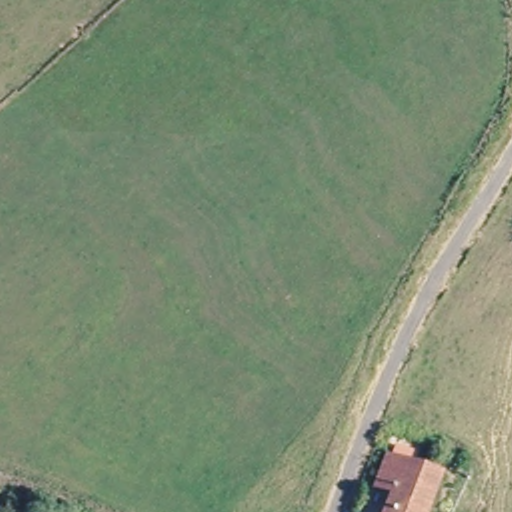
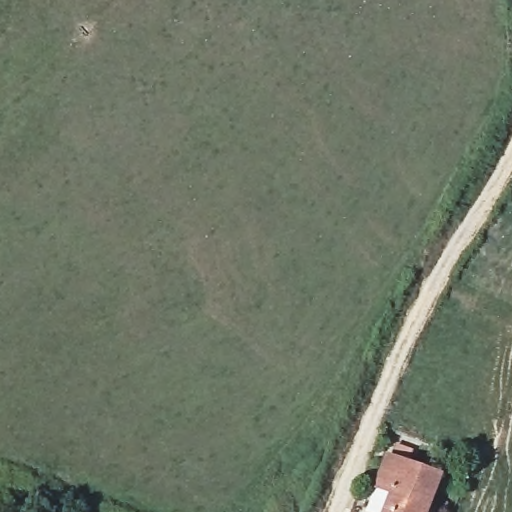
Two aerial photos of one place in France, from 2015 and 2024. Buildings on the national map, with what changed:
unchanged [(445,470),(429,512),(392,512),(396,500),(387,496),(392,485),(381,479),(391,452),(445,470)]

